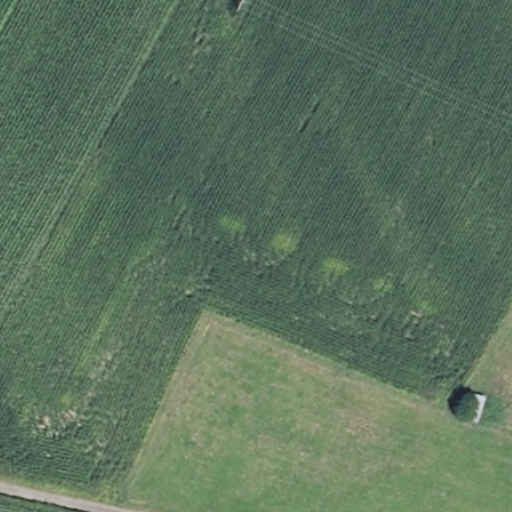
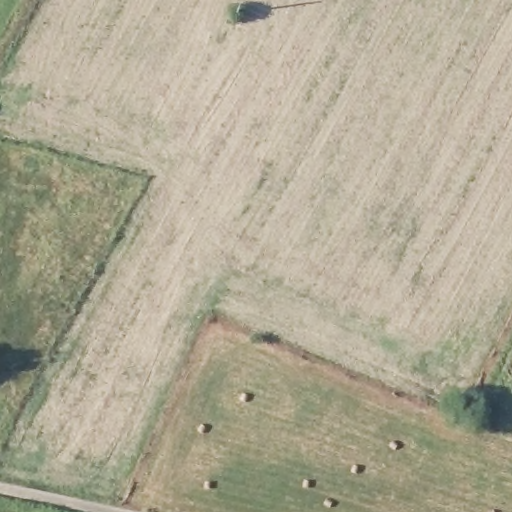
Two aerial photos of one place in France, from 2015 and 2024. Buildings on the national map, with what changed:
unchanged [(472,397),(488,402),(477,426),(463,421),(472,397)]

